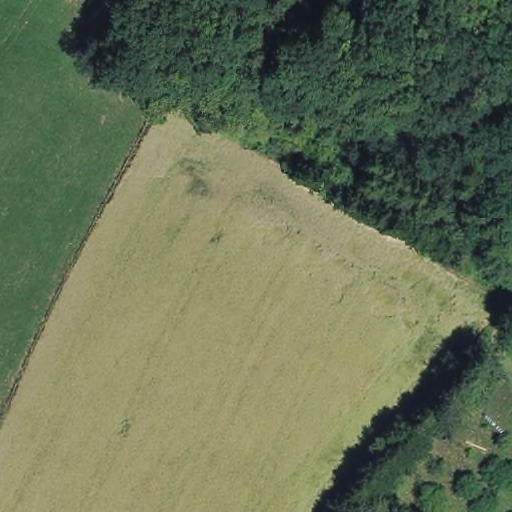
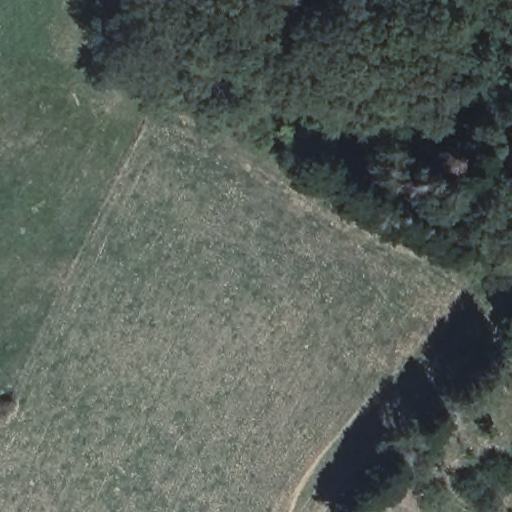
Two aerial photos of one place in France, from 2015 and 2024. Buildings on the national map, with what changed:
unchanged [(447,131),(436,148),(390,122),(397,110),(408,115),(411,110),(447,131)]

